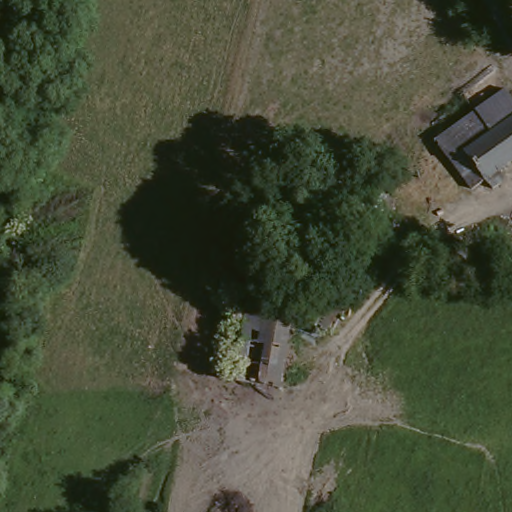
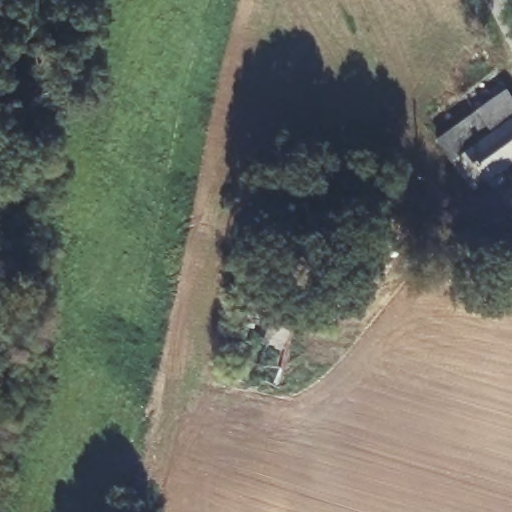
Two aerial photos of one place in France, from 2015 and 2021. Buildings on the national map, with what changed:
unchanged [(506,189),(494,197),(486,187),(469,201),(432,148),(475,117),(503,97),(512,106),(512,168),(500,177),(506,189)]
unchanged [(329,334),(308,322),(332,281),(358,282),(329,334)]
unchanged [(301,311),(285,391),(235,382),(250,302),(301,311)]

